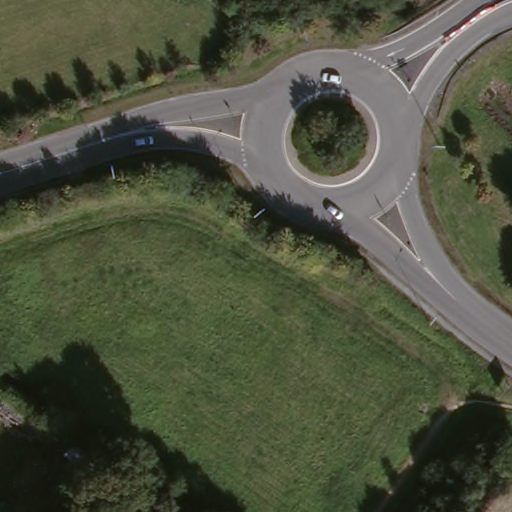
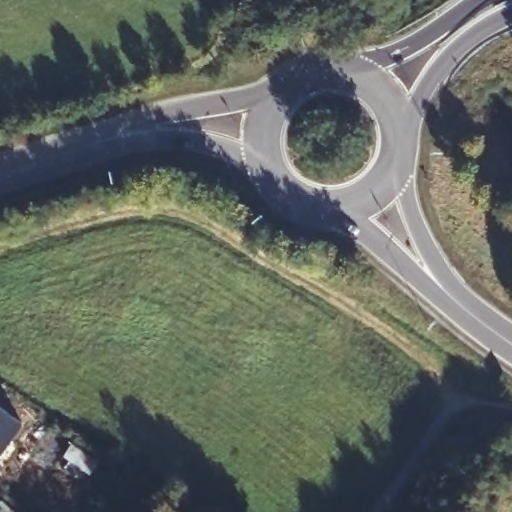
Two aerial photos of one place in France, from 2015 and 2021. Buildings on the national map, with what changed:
new [(2,452),(0,451),(0,405),(24,422),(2,452)]

